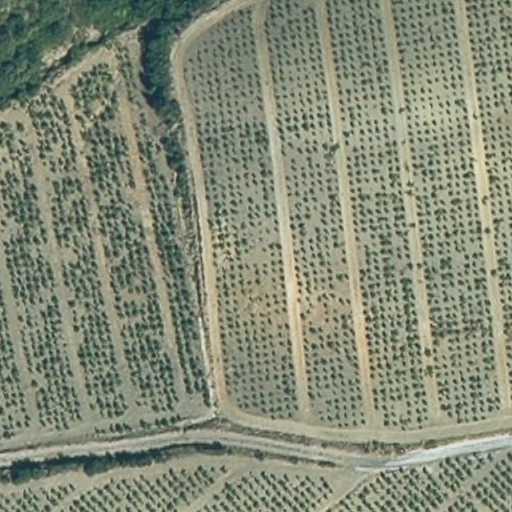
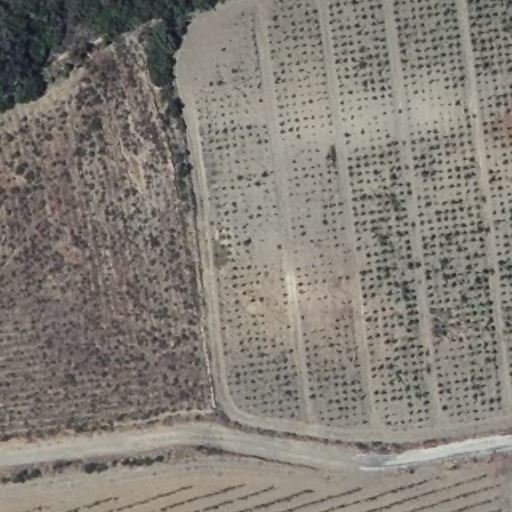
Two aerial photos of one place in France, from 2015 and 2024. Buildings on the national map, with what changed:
[]

